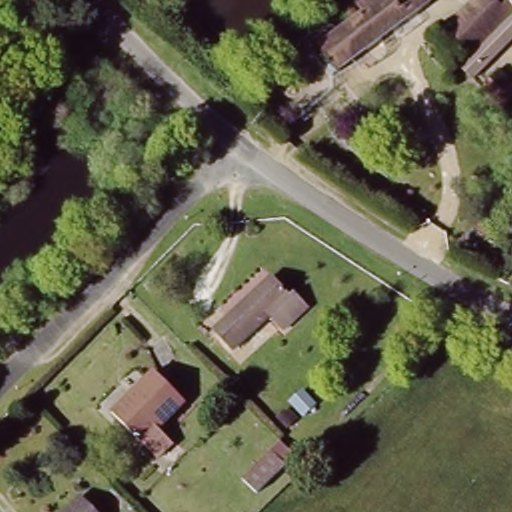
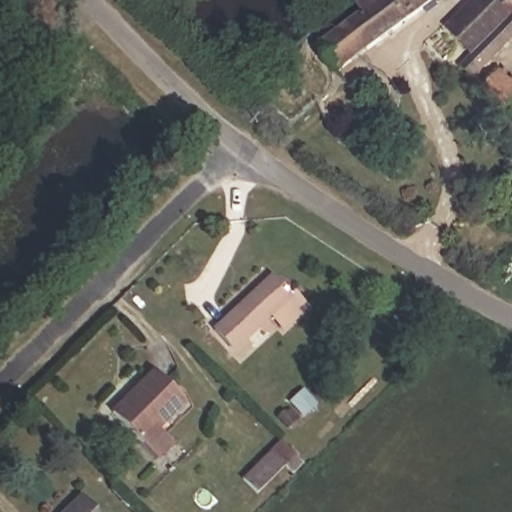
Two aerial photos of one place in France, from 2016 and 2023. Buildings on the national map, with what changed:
unchanged [(316,49),(384,0),(437,0),(335,75),(316,49)]
unchanged [(512,17),(475,57),(448,31),(477,0),(495,0),(502,6),(509,0),(512,0),(512,17)]
unchanged [(512,17),(512,40),(476,77),(465,67),(475,57),(512,17)]
unchanged [(512,87),(512,102),(502,113),(481,92),(499,74),(512,87)]
unchanged [(264,319),(227,354),(208,334),(254,290),(264,280),(270,286),(283,300),(288,296),(301,312),(284,328),(277,334),(264,319)]
unchanged [(173,445),(156,461),(143,449),(141,448),(110,418),(153,375),(183,406),(158,431),(166,438),(173,445)]
unchanged [(281,411),(291,421),(285,427),(275,417),(281,411)]
unchanged [(269,451),(283,466),(255,493),(241,479),(269,451)]
unchanged [(96,512),(74,512),(85,501),(96,512)]

